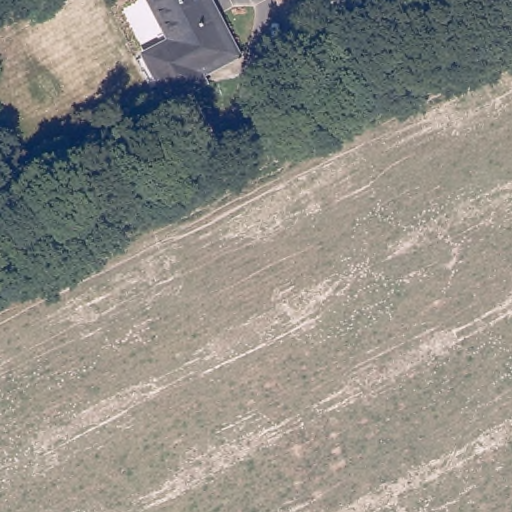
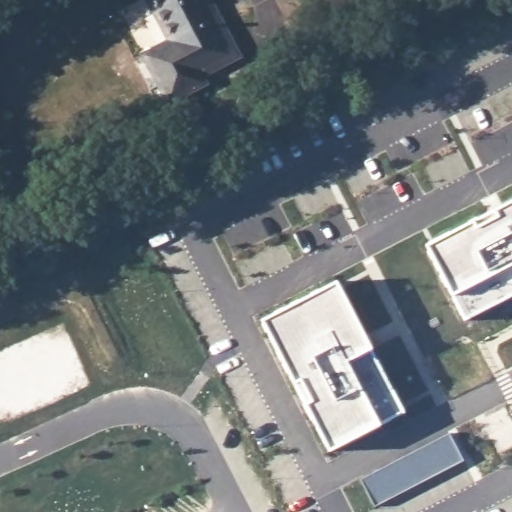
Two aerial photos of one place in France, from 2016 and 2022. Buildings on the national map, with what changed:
unchanged [(166,104),(139,50),(165,37),(148,0),(204,0),(211,17),(218,14),(238,59),(199,78),(203,87),(166,104)]
new [(512,296),(464,320),(450,296),(423,245),(512,198),(512,296)]
new [(335,279),(370,347),(404,413),(378,426),(328,451),(260,320),(335,279)]
new [(453,431),(466,458),(375,506),(361,479),(453,431)]

